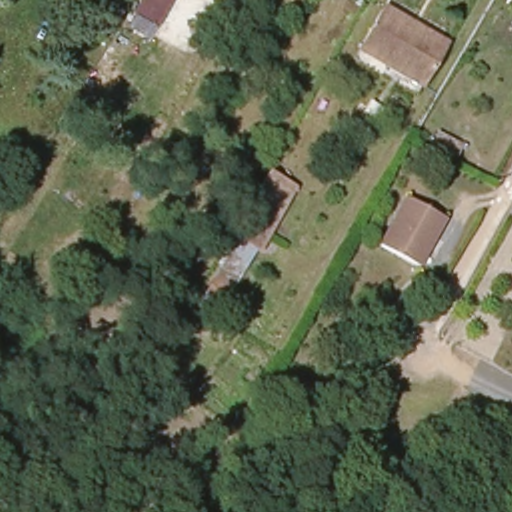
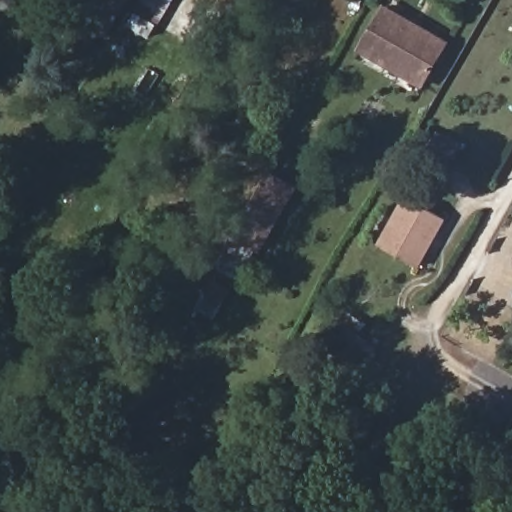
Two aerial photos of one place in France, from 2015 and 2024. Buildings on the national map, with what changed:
unchanged [(101,0),(128,0),(102,42),(82,30),(101,0)]
unchanged [(158,7),(162,2),(163,0),(179,0),(189,7),(184,16),(180,22),(168,41),(146,27),(158,7)]
unchanged [(359,49),(384,5),(405,17),(380,61),(359,49)]
unchanged [(385,64),(380,61),(405,17),(448,41),(428,79),(424,86),(385,64)]
unchanged [(264,257),(256,252),(217,322),(194,311),(230,242),(271,168),(302,186),(264,257)]
unchanged [(383,246),(410,197),(447,219),(419,266),(383,246)]

